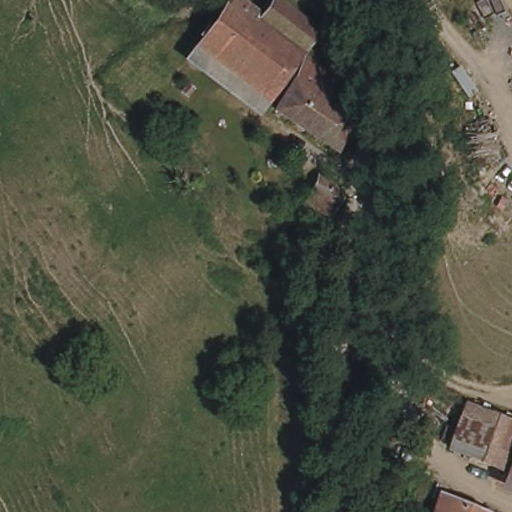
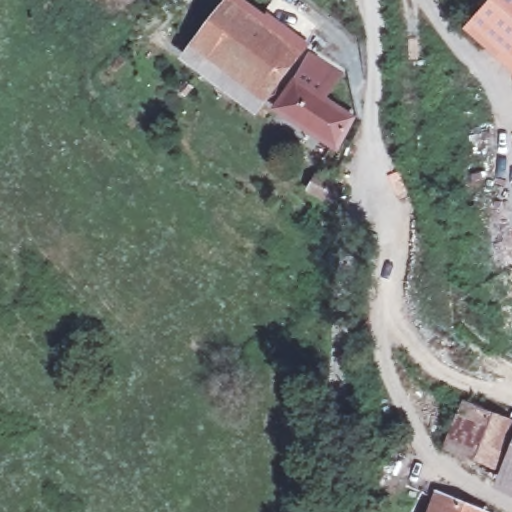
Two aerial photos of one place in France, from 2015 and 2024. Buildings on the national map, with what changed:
new [(489,0),(512,0),(512,73),(462,29),(489,0)]
unchanged [(258,104),(195,59),(227,10),(257,31),(273,10),(277,13),(313,43),(310,46),(298,64),(292,60),(258,104)]
unchanged [(337,79),(339,81),(325,103),(352,123),(332,151),(277,109),(310,59),(337,79)]
unchanged [(177,89),(183,80),(190,85),(183,94),(177,89)]
unchanged [(310,172),(337,188),(322,214),(295,198),(310,172)]
unchanged [(445,448),(463,402),(512,417),(512,455),(507,470),(445,448)]
unchanged [(512,472),(507,470),(512,455),(512,472)]
unchanged [(441,496),(488,512),(435,512),(441,496)]

